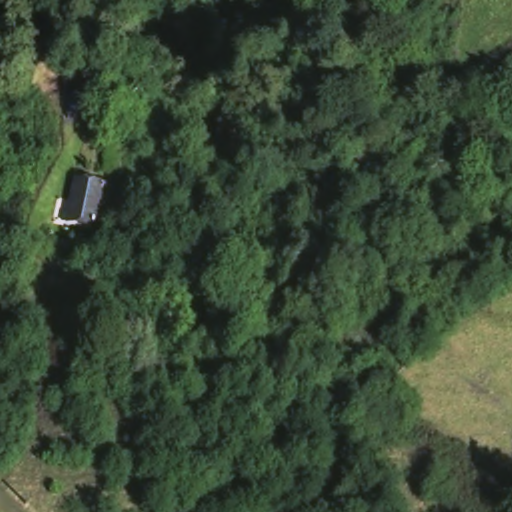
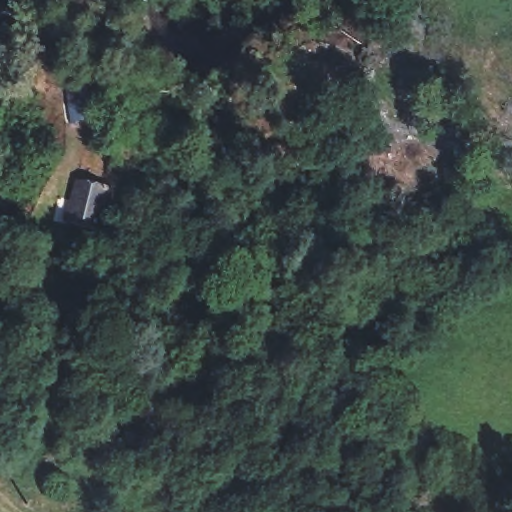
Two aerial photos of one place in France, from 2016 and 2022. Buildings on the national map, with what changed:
unchanged [(71,182),(105,188),(96,227),(61,218),(71,182)]

